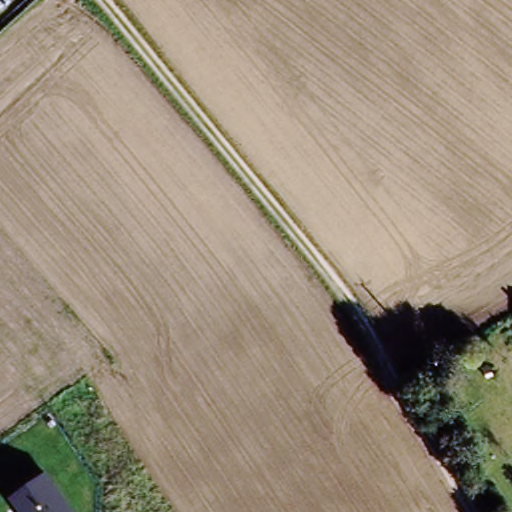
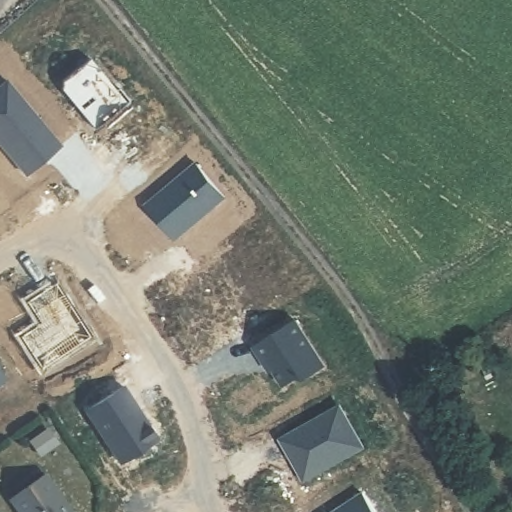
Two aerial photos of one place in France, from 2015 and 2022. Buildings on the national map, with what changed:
new [(6,80),(61,145),(26,175),(0,143),(0,86),(6,80)]
new [(196,163),(225,197),(175,239),(146,205),(196,163)]
new [(295,320),(324,365),(305,377),(298,376),(283,385),(267,360),(264,362),(254,346),(295,320)]
new [(6,379),(0,383),(0,371),(6,379)]
new [(123,386),(132,400),(129,402),(136,412),(140,412),(157,440),(121,463),(86,410),(123,386)]
new [(339,405),(362,446),(304,480),(281,438),(339,405)]
unchanged [(17,512),(7,497),(45,473),(71,512),(17,512)]
new [(375,512),(334,512),(362,493),(375,512)]

